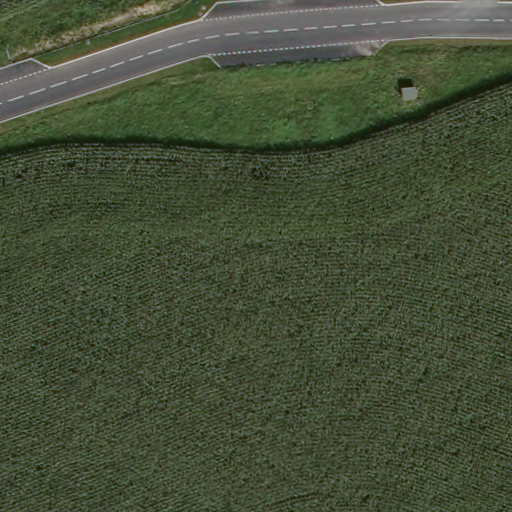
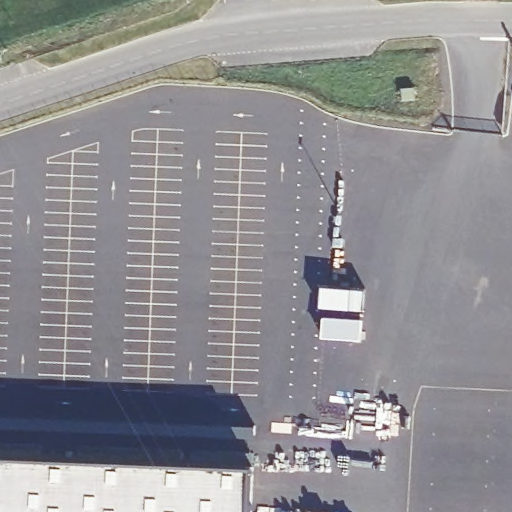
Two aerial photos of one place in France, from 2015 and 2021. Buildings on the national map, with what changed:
new [(253,462),(251,512),(0,512),(0,453),(253,462)]

